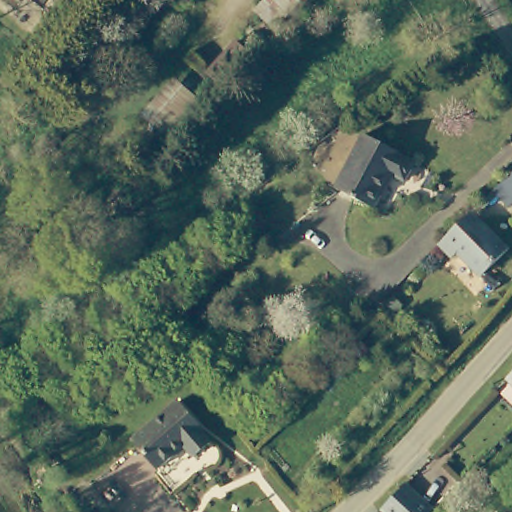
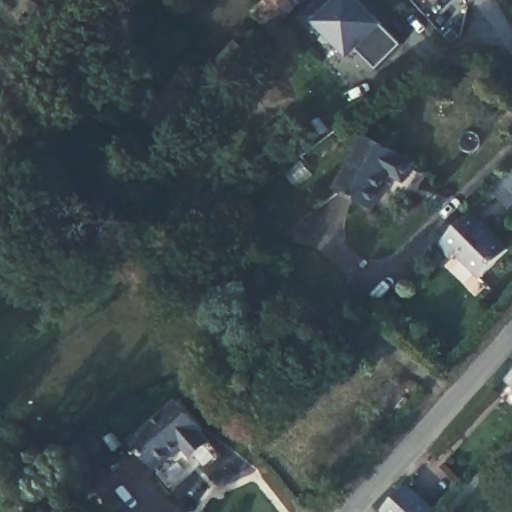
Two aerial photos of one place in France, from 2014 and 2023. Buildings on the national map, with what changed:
unchanged [(271,25),(256,9),(266,0),(301,0),(271,25)]
new [(378,67),(362,47),(349,59),(329,39),(326,45),(300,20),(320,0),(335,0),(362,0),(385,23),(401,44),(378,67)]
unchanged [(301,0),(309,0),(305,4),(301,0)]
unchanged [(206,106),(171,136),(145,104),(180,75),(206,106)]
unchanged [(405,147),(402,152),(415,159),(406,177),(393,172),(374,205),(336,186),(365,128),(405,147)]
unchanged [(512,168),(512,200),(496,184),(512,168)]
unchanged [(470,211),(508,250),(477,280),(451,254),(446,260),(435,248),(470,211)]
unchanged [(512,364),(512,369),(509,367),(512,364)]
unchanged [(512,385),(512,397),(506,392),(512,385)]
unchanged [(205,473),(190,456),(166,477),(135,442),(178,401),(227,453),(205,473)]
unchanged [(423,512),(374,512),(396,487),(423,512)]

